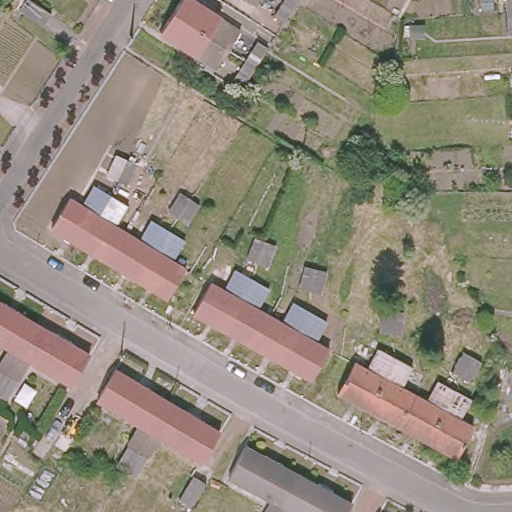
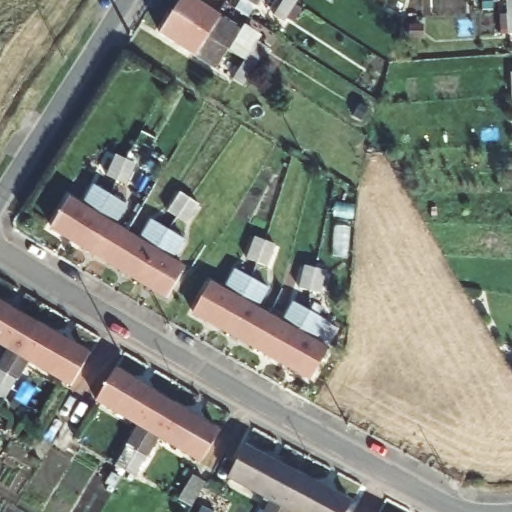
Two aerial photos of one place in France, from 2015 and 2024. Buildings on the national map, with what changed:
unchanged [(173,17),(169,15),(179,0),(186,0),(235,32),(224,49),(173,17)]
unchanged [(252,6),(243,0),(256,0),(252,6)]
unchanged [(289,2),(276,21),(266,15),(276,0),(291,0),(289,2)]
unchanged [(510,0),(512,0),(512,35),(511,13),(510,0)]
unchanged [(211,70),(157,34),(169,15),(173,17),(224,49),(211,70)]
unchanged [(224,79),(238,58),(249,42),(259,49),(248,65),(235,85),(224,79)]
demolished [(6,99),(0,108),(0,95),(6,99)]
unchanged [(141,180),(134,191),(114,180),(97,169),(104,158),(119,167),(141,180)]
unchanged [(68,200),(78,205),(89,186),(106,197),(104,203),(95,220),(79,247),(49,230),(68,200)]
unchanged [(195,227),(177,216),(156,204),(163,192),(184,205),(202,216),(195,227)]
unchanged [(79,247),(95,220),(104,203),(106,197),(124,208),(113,226),(124,233),(106,263),(79,247)]
unchanged [(106,263),(124,233),(136,240),(148,221),(166,232),(158,244),(136,280),(106,263)]
unchanged [(158,244),(166,232),(184,243),(173,262),(184,270),(167,298),(136,280),(158,244)]
unchanged [(283,264),(276,275),(254,262),(241,254),(248,243),(259,249),(283,264)]
unchanged [(192,313),(210,284),(219,290),(233,270),(247,280),(243,290),(221,330),(192,313)]
unchanged [(344,300),(336,312),(308,295),(299,290),(307,277),(311,280),(344,300)]
unchanged [(221,330),(243,290),(247,280),(267,291),(255,310),(267,317),(251,347),(221,330)]
unchanged [(0,380),(0,368),(13,348),(0,341),(0,298),(36,320),(0,380)]
unchanged [(301,327),(279,364),(251,347),(267,317),(279,325),(291,305),(304,312),(301,327)]
unchanged [(326,326),(315,345),(326,351),(309,381),(279,364),(301,327),(304,312),(326,326)]
unchanged [(88,351),(69,383),(23,355),(1,387),(0,387),(0,380),(36,320),(88,351)]
demolished [(417,351),(384,331),(391,320),(418,335),(425,340),(417,351)]
demolished [(334,395),(351,365),(361,371),(372,353),(385,361),(385,373),(364,411),(334,395)]
demolished [(479,386),(459,375),(444,365),(451,353),(465,361),(486,373),(479,386)]
demolished [(394,427),(364,411),(385,373),(385,361),(407,373),(397,390),(411,397),(394,427)]
unchanged [(121,460),(143,426),(95,398),(115,366),(167,397),(126,464),(121,460)]
demolished [(424,440),(423,442),(394,427),(411,397),(422,403),(431,387),(447,396),(424,440)]
demolished [(466,407),(457,421),(470,428),(453,458),(423,442),(424,440),(447,396),(466,407)]
unchanged [(218,427),(198,460),(154,433),(133,467),(126,464),(167,397),(218,427)]
unchanged [(226,479),(243,447),(296,475),(276,512),(270,512),(274,505),(226,479)]
unchanged [(345,512),(287,512),(284,510),(284,512),(276,512),(296,475),(349,504),(345,512)]

